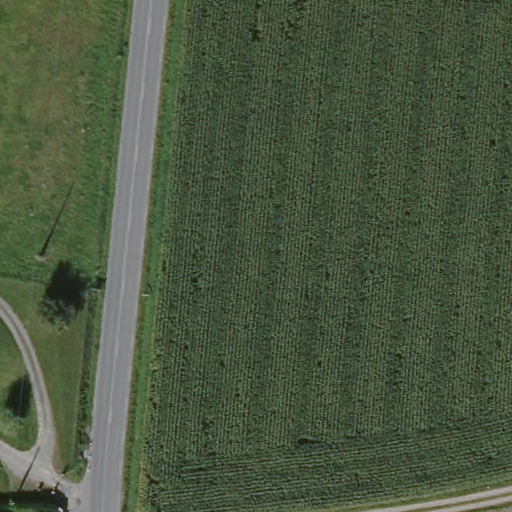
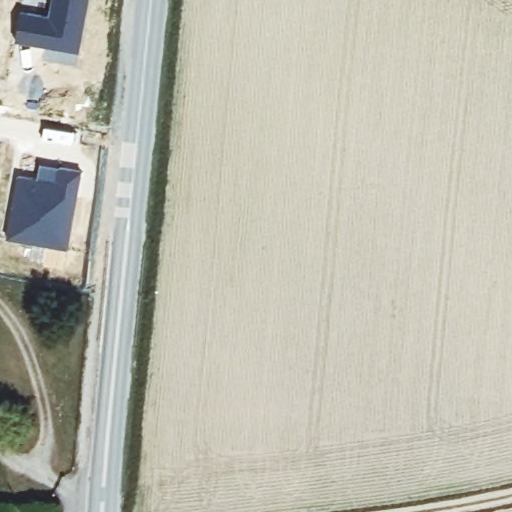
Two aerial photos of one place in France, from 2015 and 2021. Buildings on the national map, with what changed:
new [(48,17),(51,0),(87,0),(79,52),(15,42),(20,12),(48,17)]
new [(17,180),(55,185),(58,170),(80,174),(67,251),(7,242),(17,180)]

